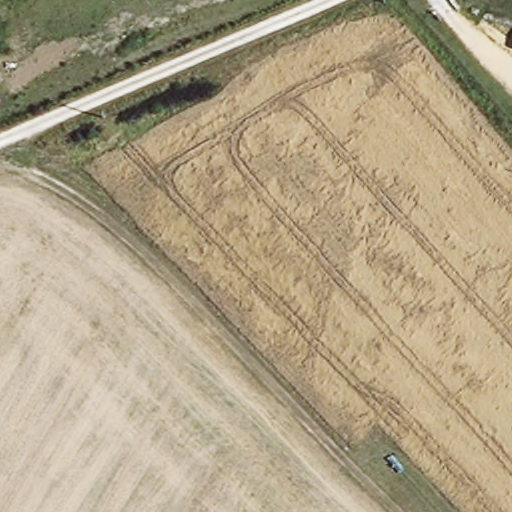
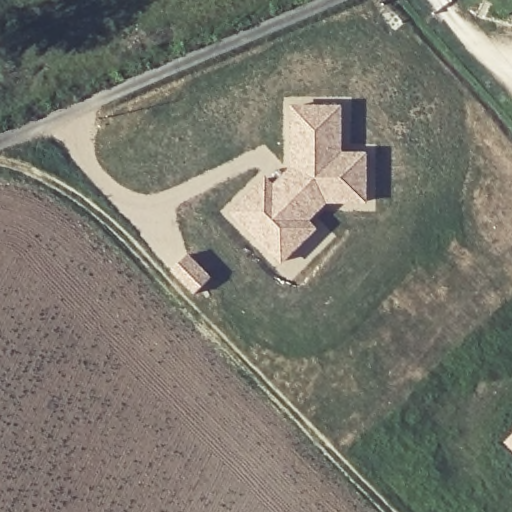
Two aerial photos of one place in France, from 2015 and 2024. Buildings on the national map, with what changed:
new [(265,174),(274,182),(287,168),(288,103),(344,103),(344,150),(369,150),(369,204),(327,204),(311,220),(319,228),(282,264),(228,211),(265,174)]
new [(188,253),(212,277),(194,294),(170,270),(188,253)]
new [(512,432),(512,451),(502,442),(512,432)]

